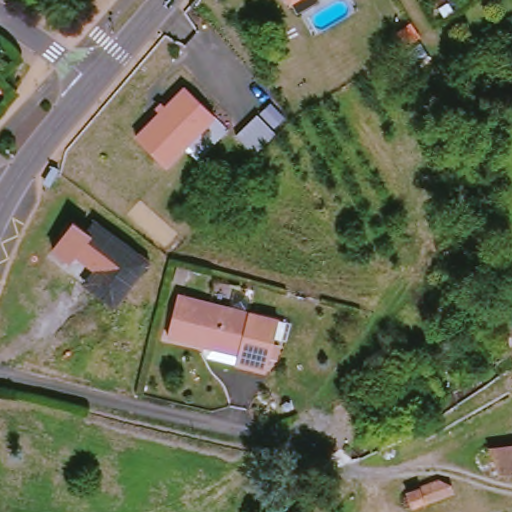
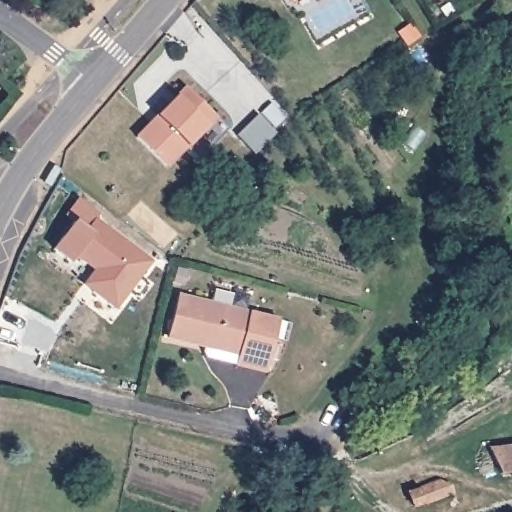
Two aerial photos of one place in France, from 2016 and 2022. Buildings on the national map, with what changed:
unchanged [(287,0),(302,0),(290,6),(287,0)]
unchanged [(219,120),(170,171),(137,137),(160,113),(157,110),(164,103),(167,106),(186,87),(219,120)]
unchanged [(91,231),(103,216),(152,258),(114,307),(84,287),(96,271),(79,255),(72,261),(55,250),(80,220),(91,231)]
unchanged [(215,362),(210,353),(210,351),(172,341),(183,300),(255,318),(285,325),(282,335),(272,376),(215,362)]
unchanged [(489,450),(512,447),(512,473),(499,474),(489,450)]
unchanged [(408,492),(439,480),(451,485),(454,493),(414,507),(408,492)]

